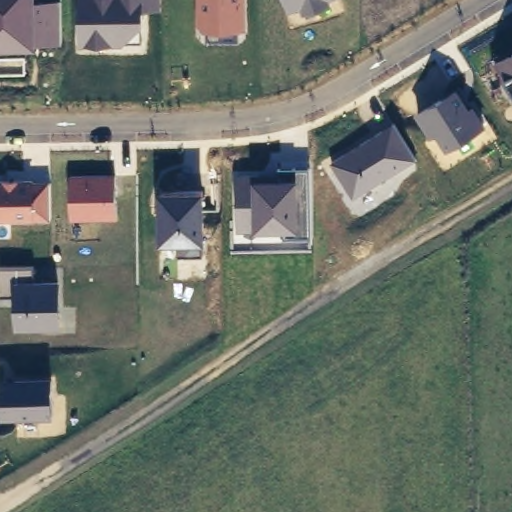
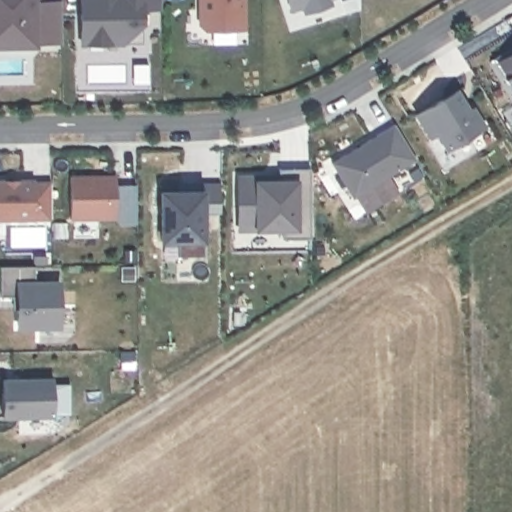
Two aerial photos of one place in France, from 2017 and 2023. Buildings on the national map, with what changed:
unchanged [(37,44),(37,48),(0,49),(0,0),(42,0),(42,1),(60,1),(62,44),(37,44)]
unchanged [(142,11),(142,42),(128,42),(123,47),(80,47),(78,0),(160,0),(160,11),(142,11)]
unchanged [(205,33),(197,24),(196,0),(246,0),(246,32),(205,33)]
unchanged [(303,15),(300,8),(288,12),(284,0),(329,0),(332,6),(303,15)]
unchanged [(512,51),(512,91),(493,62),(512,51)]
unchanged [(457,87),(470,109),(475,106),(487,127),(447,152),(435,135),(429,140),(415,115),(457,87)]
unchanged [(416,160),(353,199),(330,162),(393,124),(416,160)]
unchanged [(310,239),(283,239),(283,232),(237,232),(237,206),(253,206),(253,172),(308,169),(310,239)]
unchanged [(117,220),(70,219),(70,176),(116,174),(117,220)]
unchanged [(50,221),(0,222),(0,181),(50,182),(50,221)]
unchanged [(206,242),(202,242),(202,256),(178,256),(177,242),(160,243),(160,192),(205,189),(206,242)]
unchanged [(33,268),(33,281),(60,280),(62,327),(17,329),(17,295),(1,296),(0,268),(33,268)]
unchanged [(55,418),(2,419),(1,378),(52,376),(55,418)]

